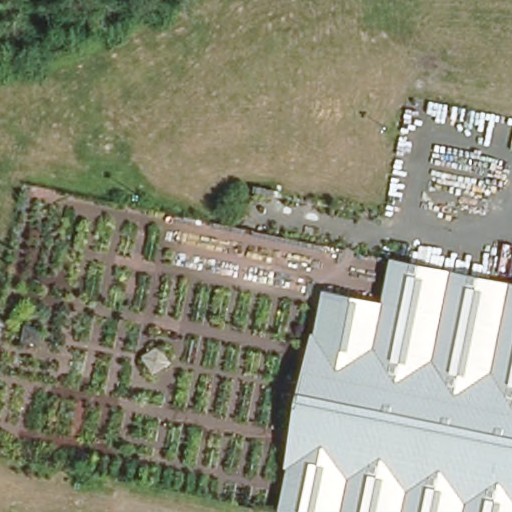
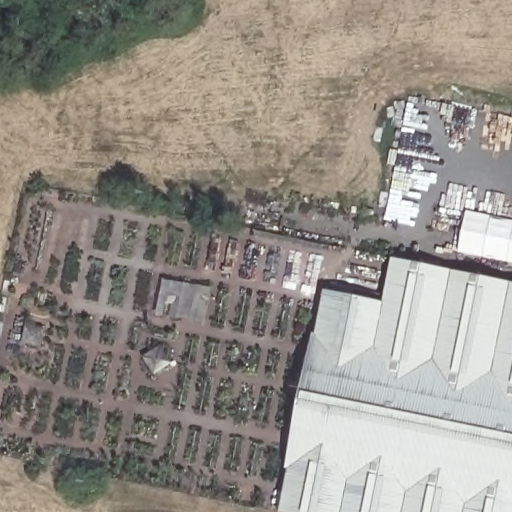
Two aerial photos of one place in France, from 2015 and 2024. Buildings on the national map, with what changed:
new [(512,263),(457,252),(466,212),(512,222),(512,263)]
unchanged [(512,284),(512,512),(342,512),(384,302),(392,259),(512,284)]
unchanged [(342,512),(281,512),(326,290),(384,302),(342,512)]

